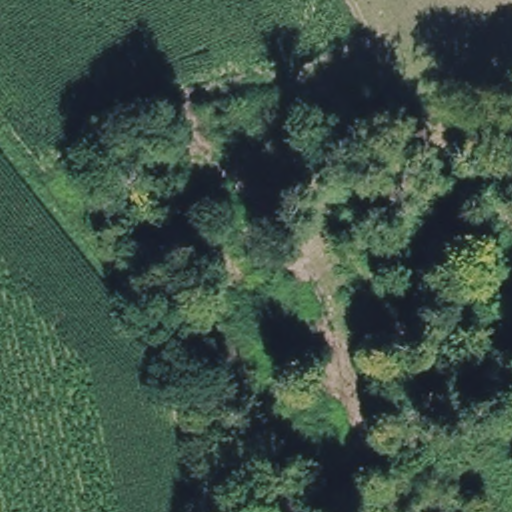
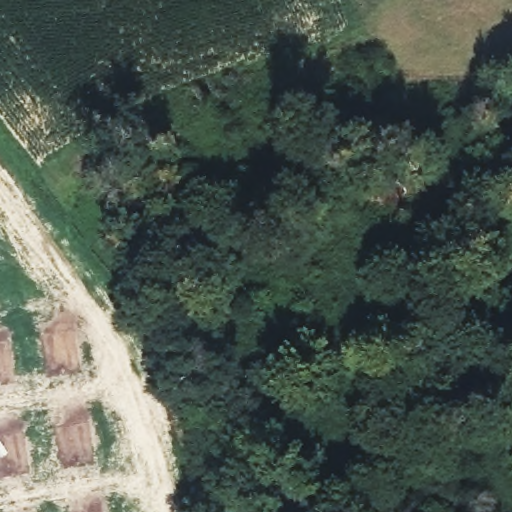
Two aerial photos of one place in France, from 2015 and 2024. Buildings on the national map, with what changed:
[]

